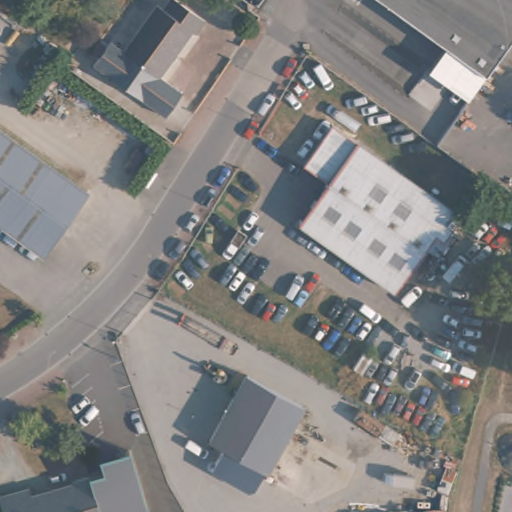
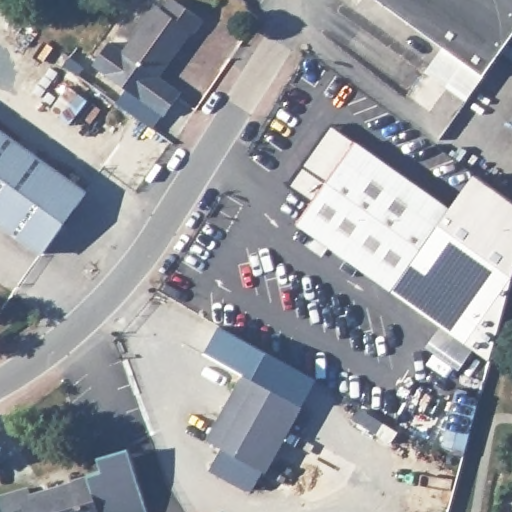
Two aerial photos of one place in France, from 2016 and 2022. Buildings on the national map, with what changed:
unchanged [(123,48),(157,4),(163,6),(168,0),(182,0),(208,20),(196,35),(192,33),(160,76),(127,52),(123,48)]
unchanged [(447,51),(376,0),(512,0),(512,40),(485,78),(447,51)]
unchanged [(160,76),(164,81),(182,94),(165,116),(93,66),(110,41),(127,52),(160,76)]
unchanged [(468,101),(431,75),(447,51),(485,78),(468,101)]
unchanged [(444,241),(435,235),(393,291),(298,222),(325,181),(301,163),(330,123),(462,215),(444,241)]
unchanged [(0,223),(0,127),(88,192),(43,255),(0,223)]
new [(444,241),(462,215),(451,208),(474,175),(512,203),(512,279),(491,361),(393,291),(435,235),(444,241)]
new [(249,378),(205,354),(220,328),(317,381),(303,409),(249,378)]
unchanged [(213,442),(249,378),(303,409),(268,473),(213,442)]
unchanged [(0,509),(0,501),(29,491),(36,500),(75,486),(75,483),(108,470),(104,461),(114,460),(119,454),(117,449),(129,445),(136,453),(154,505),(135,512),(1,512),(0,509)]
new [(251,493),(210,470),(222,447),(263,470),(251,493)]

